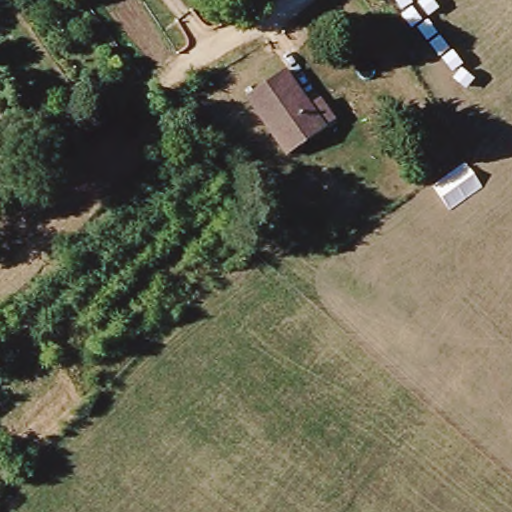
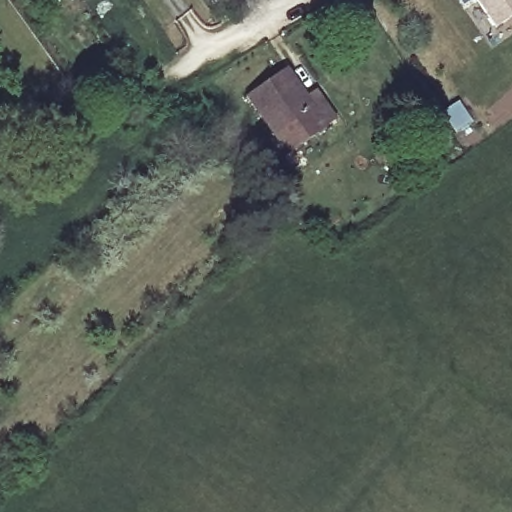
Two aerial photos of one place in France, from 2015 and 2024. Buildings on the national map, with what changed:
new [(496,28),(476,0),(512,0),(512,17),(496,28)]
unchanged [(285,159),(244,99),(282,71),(309,111),(320,104),(334,125),(324,132),(285,159)]

